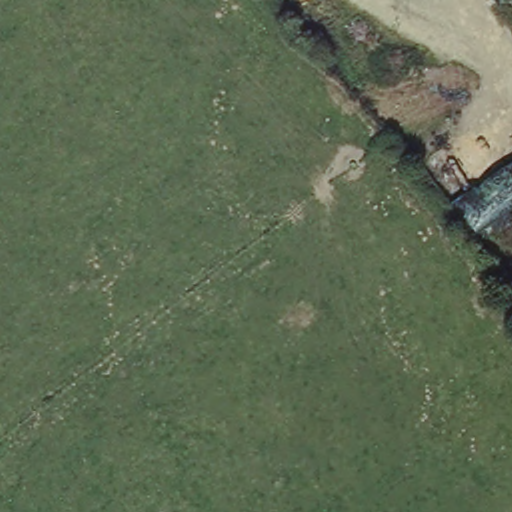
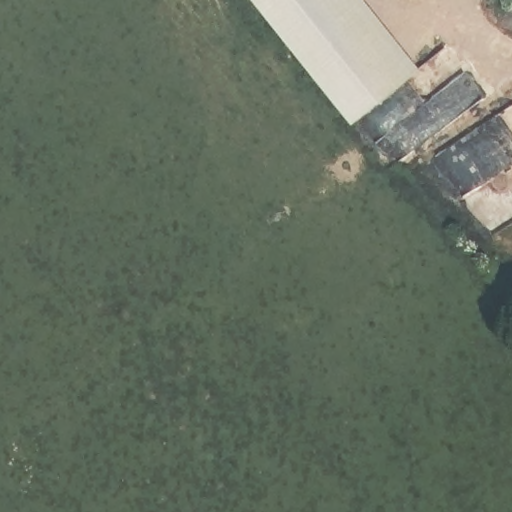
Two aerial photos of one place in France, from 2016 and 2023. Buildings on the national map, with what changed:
new [(420,74),(353,125),(248,0),(362,0),(420,74)]
unchanged [(512,4),(509,0),(512,0),(512,4)]

